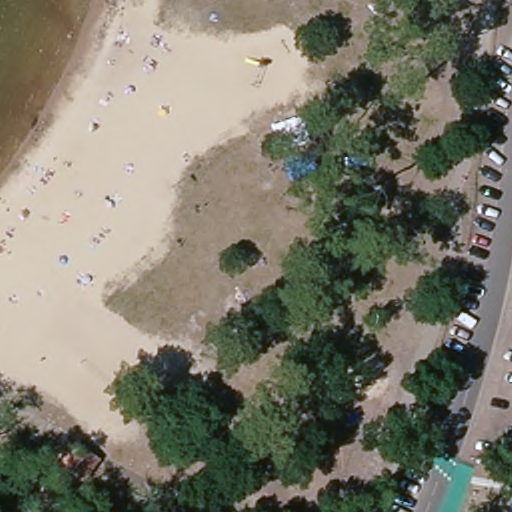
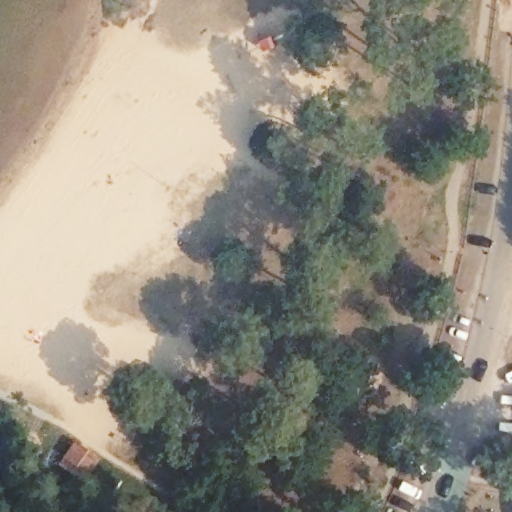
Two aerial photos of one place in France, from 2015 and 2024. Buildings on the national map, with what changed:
unchanged [(73,472),(55,457),(69,437),(87,453),(73,472)]

